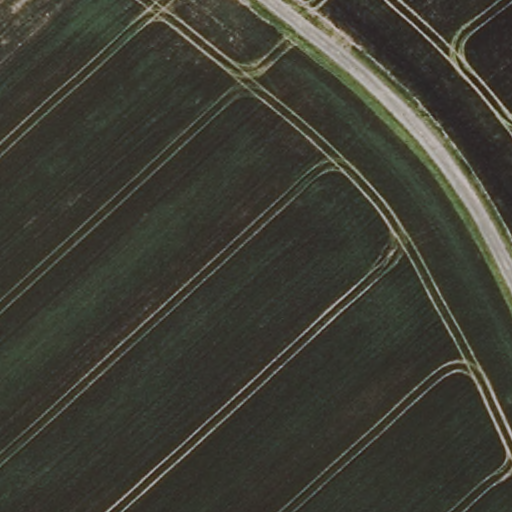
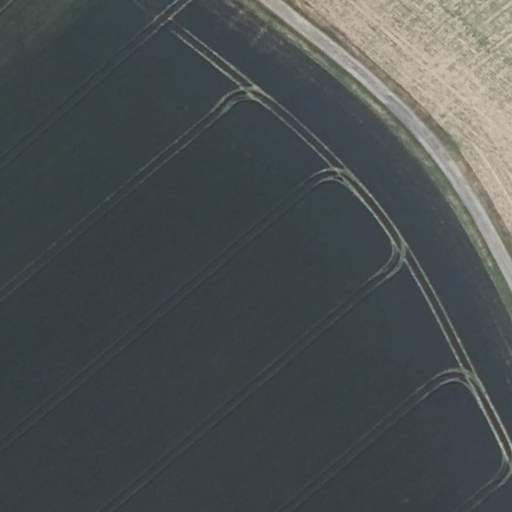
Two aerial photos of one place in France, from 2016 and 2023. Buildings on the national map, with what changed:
[]

